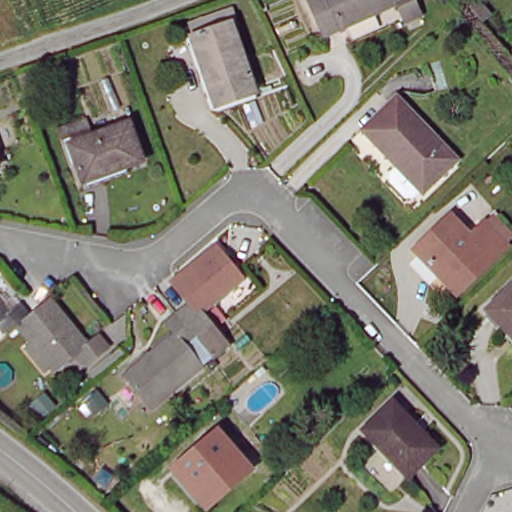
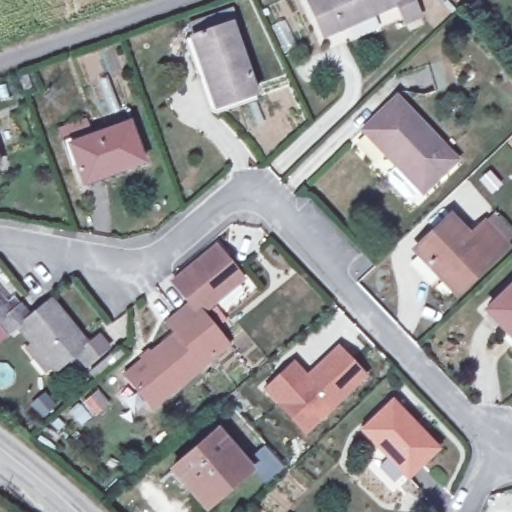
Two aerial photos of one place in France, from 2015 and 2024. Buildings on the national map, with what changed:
unchanged [(420,9),(403,19),(392,1),(325,43),(302,6),(314,0),(414,0),(420,9)]
unchanged [(255,88),(212,106),(186,40),(230,23),(255,88)]
unchanged [(455,163),(422,196),(359,132),(393,99),(455,163)]
unchanged [(136,158),(80,179),(65,137),(120,116),(136,158)]
unchanged [(465,242),(480,228),(501,252),(454,298),(412,253),(445,221),(465,242)]
unchanged [(237,275),(196,312),(223,348),(155,409),(127,378),(168,340),(158,328),(185,304),(169,285),(210,246),(237,275)]
unchanged [(483,315),(512,287),(512,348),(483,315)]
unchanged [(25,312),(38,300),(42,296),(85,337),(96,326),(109,338),(85,360),(72,350),(53,366),(12,327),(0,339),(0,313),(11,301),(25,312)]
new [(293,420),(267,392),(295,366),(308,380),(340,350),(367,378),(317,425),(307,435),(293,420)]
unchanged [(432,444),(405,477),(356,434),(387,403),(432,444)]
unchanged [(246,465),(197,506),(166,471),(215,430),(246,465)]

